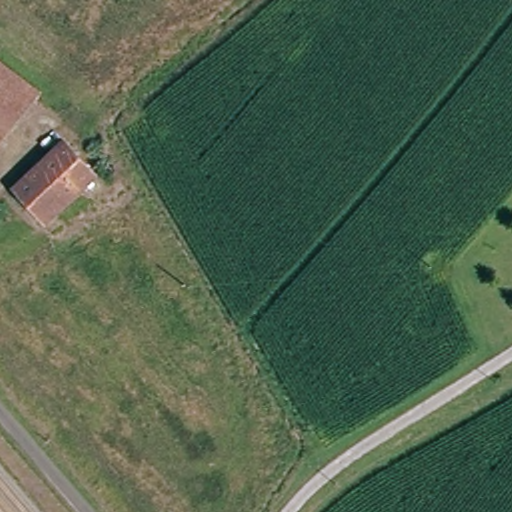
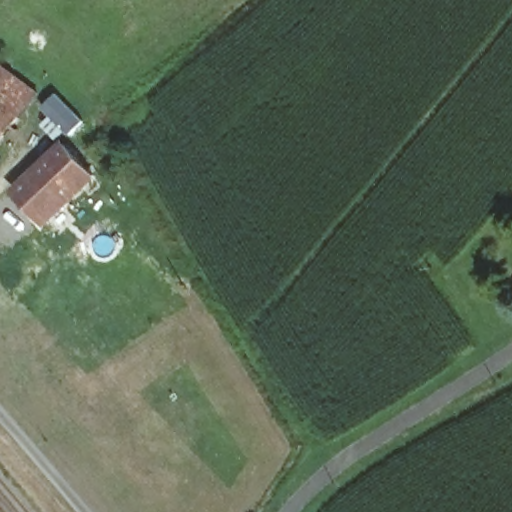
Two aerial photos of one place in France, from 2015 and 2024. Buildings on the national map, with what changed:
unchanged [(0,158),(0,65),(43,94),(0,158)]
unchanged [(17,199),(62,149),(90,175),(47,224),(17,199)]

